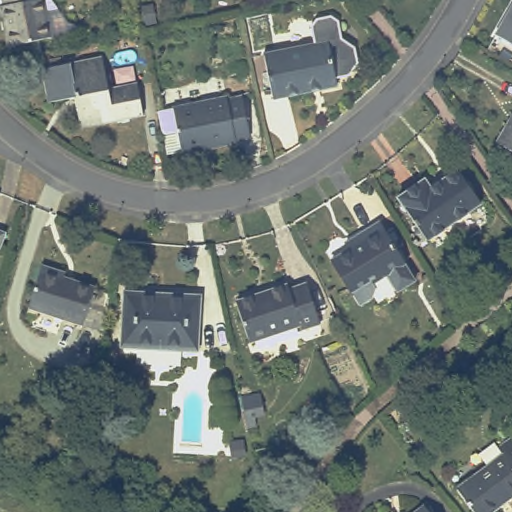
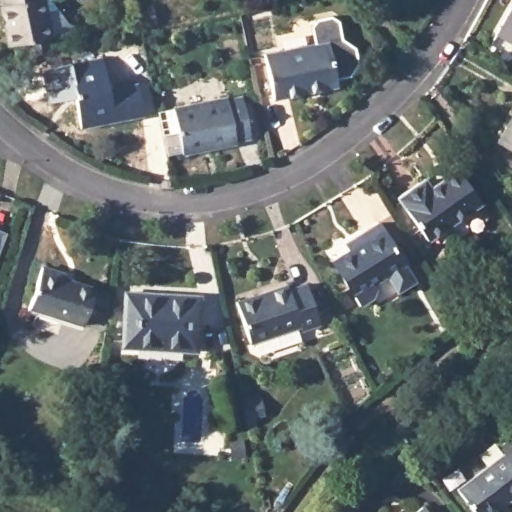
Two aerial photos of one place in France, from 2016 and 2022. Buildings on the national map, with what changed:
unchanged [(0,0),(33,0),(34,2),(37,2),(37,3),(44,2),(61,28),(71,32),(65,46),(47,50),(46,43),(4,52),(0,34),(0,0)]
unchanged [(496,35),(512,5),(512,44),(496,35)]
unchanged [(264,50),(312,40),(309,23),(314,15),(331,12),(339,17),(342,35),(355,43),(358,58),(349,71),(335,74),(337,81),(273,94),(264,50)]
unchanged [(79,97),(55,102),(48,69),(106,57),(113,90),(141,84),(147,114),(86,127),(79,97)]
unchanged [(173,109),(227,98),(227,100),(242,97),(250,138),(236,141),(236,144),(182,155),(173,109)]
unchanged [(497,143),(512,115),(512,152),(497,143)]
unchanged [(403,207),(401,208),(395,199),(424,180),(430,189),(456,170),(479,202),(427,240),(403,207)]
unchanged [(400,257),(411,274),(393,285),(382,269),(366,279),(370,286),(367,292),(353,301),(347,292),(325,257),(345,245),(341,239),(356,230),(375,217),(400,257)]
unchanged [(0,241),(0,231),(3,233),(0,241)]
unchanged [(28,309),(41,267),(64,274),(63,279),(93,288),(81,325),(28,309)]
unchanged [(236,303),(287,286),(288,290),(306,285),(319,325),(301,332),(298,327),(250,343),(236,303)]
unchanged [(197,351),(121,347),(125,293),(153,295),(172,296),(199,297),(197,351)]
unchanged [(505,455),(500,448),(512,439),(512,498),(493,512),(475,512),(459,490),(505,455)]
unchanged [(447,512),(411,512),(434,495),(447,512)]

